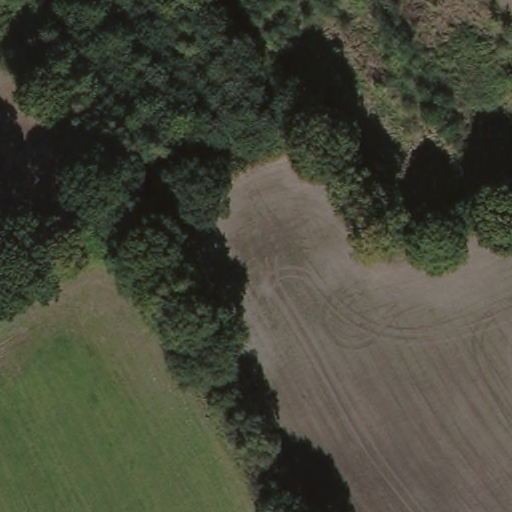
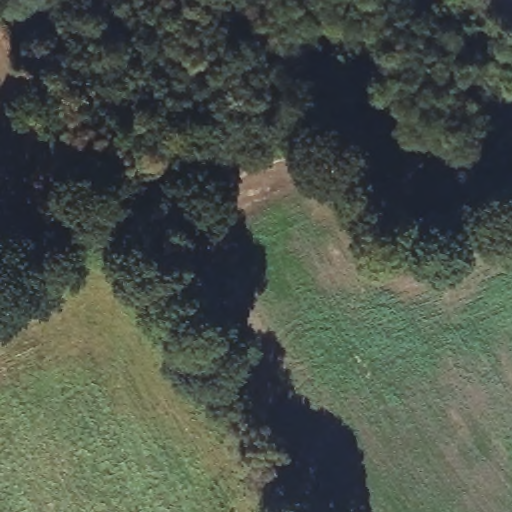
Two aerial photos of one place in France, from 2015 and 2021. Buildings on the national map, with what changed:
[]

